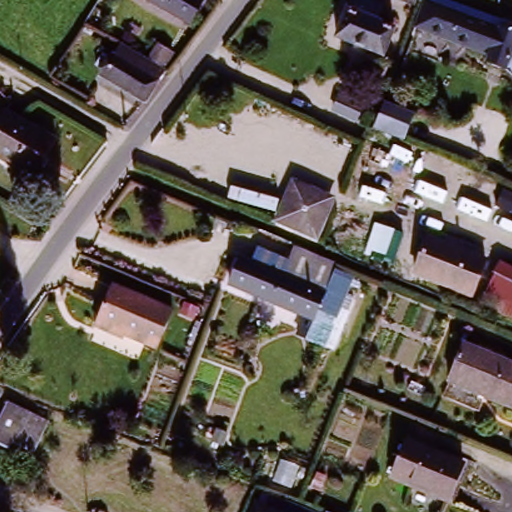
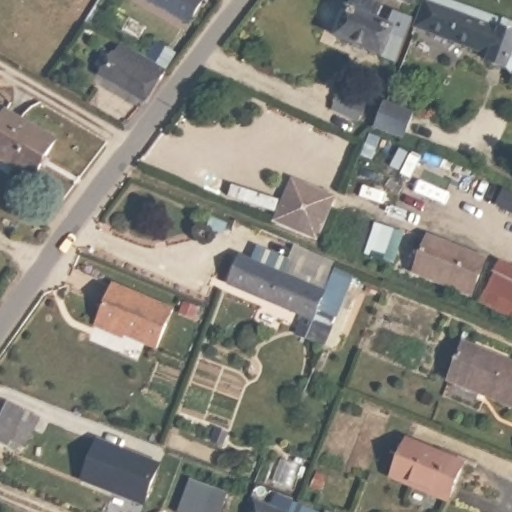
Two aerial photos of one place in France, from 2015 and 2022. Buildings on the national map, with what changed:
unchanged [(195,29),(149,0),(201,0),(210,6),(195,29)]
unchanged [(377,56),(333,39),(347,0),(371,0),(376,2),(372,14),(390,22),(377,56)]
unchanged [(398,0),(400,0),(400,1),(398,0)]
unchanged [(503,73),(479,64),(481,55),(428,37),(422,55),(403,48),(410,31),(421,0),(446,0),(495,16),(512,22),(512,80),(507,78),(503,73)]
unchanged [(86,53),(76,70),(60,62),(70,45),(86,53)]
unchanged [(117,59),(122,51),(165,77),(160,85),(146,108),(102,82),(117,59)]
unchanged [(362,124),(337,114),(343,102),(367,111),(362,124)]
unchanged [(415,113),(404,139),(376,128),(386,102),(415,113)]
unchanged [(59,138),(35,176),(15,164),(18,158),(0,146),(0,129),(13,109),(59,138)]
unchanged [(298,215),(305,199),(324,207),(318,223),(298,215)]
unchanged [(475,298),(412,277),(425,238),(488,263),(475,298)]
unchanged [(285,277),(295,252),(337,268),(336,274),(315,323),(229,287),(240,259),(285,277)]
unchanged [(502,265),(512,270),(512,323),(480,308),(502,265)]
unchanged [(336,274),(355,283),(334,330),(315,323),(336,274)]
unchanged [(96,323),(112,285),(170,310),(154,348),(96,323)]
unchanged [(461,350),(512,368),(512,409),(448,386),(461,350)]
unchanged [(8,403),(48,422),(34,456),(13,447),(10,453),(0,448),(0,417),(8,403)]
unchanged [(407,438),(465,461),(451,498),(392,476),(407,438)]
new [(99,440),(125,450),(126,452),(138,456),(138,455),(159,463),(147,497),(141,500),(85,479),(99,440)]
new [(222,512),(179,512),(191,480),(229,493),(222,512)]
unchanged [(267,506),(272,496),(312,512),(248,512),(253,502),(267,506)]

